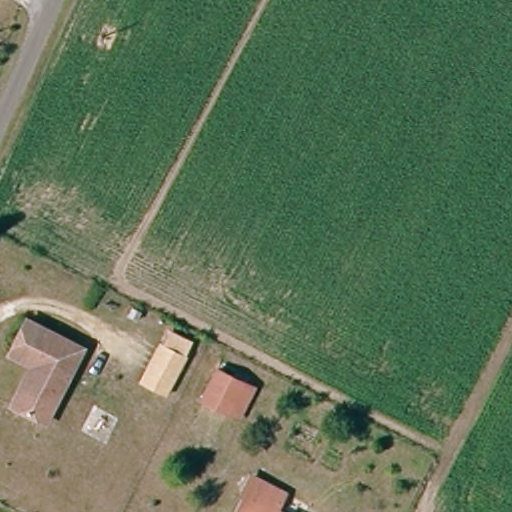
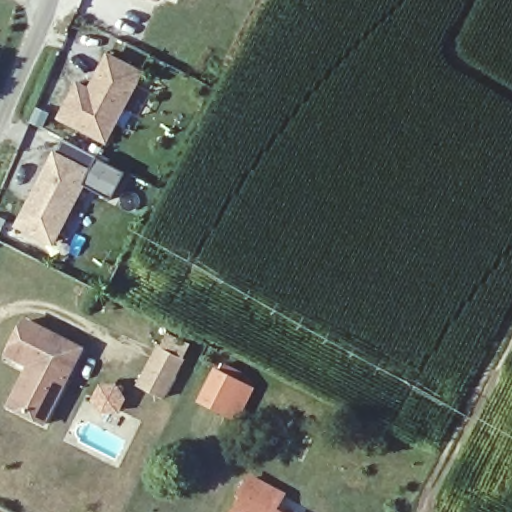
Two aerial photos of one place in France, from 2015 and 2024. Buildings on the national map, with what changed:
new [(81,81),(93,87),(111,52),(144,70),(109,137),(64,114),(81,81)]
new [(55,240),(20,222),(33,199),(36,192),(58,151),(92,168),(71,207),(64,222),(55,240)]
unchanged [(86,353),(49,428),(17,412),(38,371),(15,360),(33,326),(86,353)]
unchanged [(157,342),(179,353),(159,393),(136,382),(157,342)]
unchanged [(243,419),(232,413),(206,401),(222,370),(248,383),(258,388),(243,419)]
new [(104,389),(119,388),(125,400),(119,411),(106,412),(99,401),(104,389)]
unchanged [(288,500),(283,511),(285,512),(244,512),(249,501),(243,497),(251,481),(288,500)]

